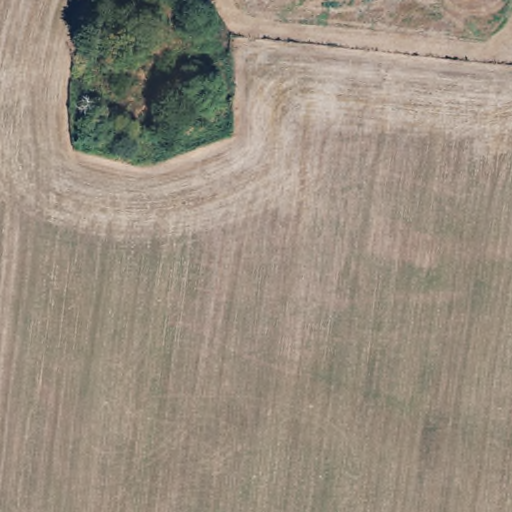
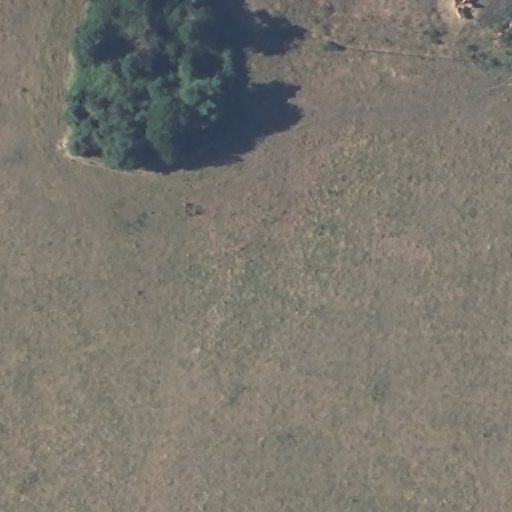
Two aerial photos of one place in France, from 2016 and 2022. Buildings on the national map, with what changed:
[]

